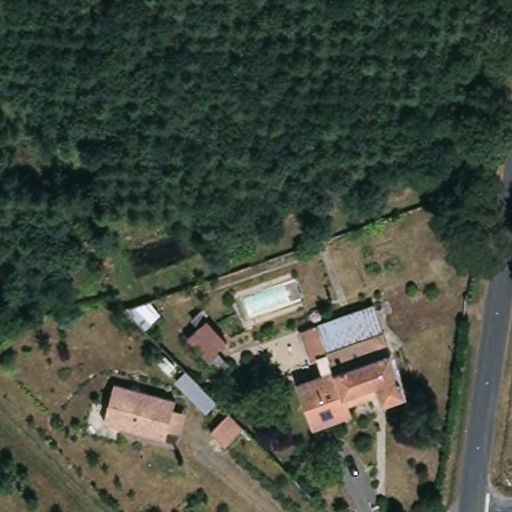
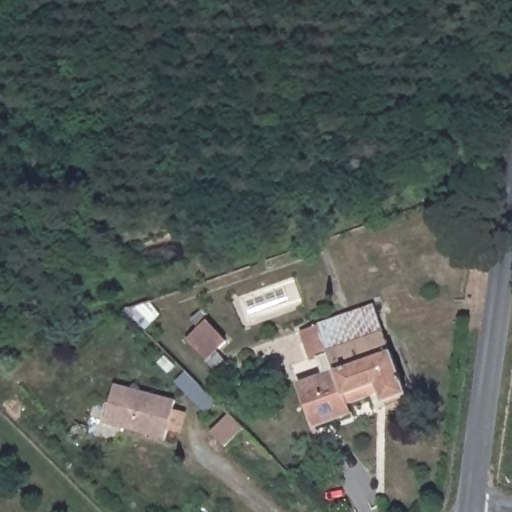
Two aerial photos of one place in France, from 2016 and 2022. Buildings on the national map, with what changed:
unchanged [(455,206),(449,191),(485,178),(482,196),(455,206)]
unchanged [(352,314),(375,305),(407,393),(385,401),(381,393),(352,314)]
unchanged [(199,327),(191,319),(199,312),(226,341),(216,350),(224,359),(217,365),(189,337),(199,327)]
unchanged [(358,413),(324,425),(308,384),(332,375),(325,356),(315,360),(309,342),(328,336),(325,324),(352,314),(381,393),(353,403),(358,413)]
unchanged [(173,401),(162,440),(118,428),(101,423),(106,404),(111,384),(173,401)]

